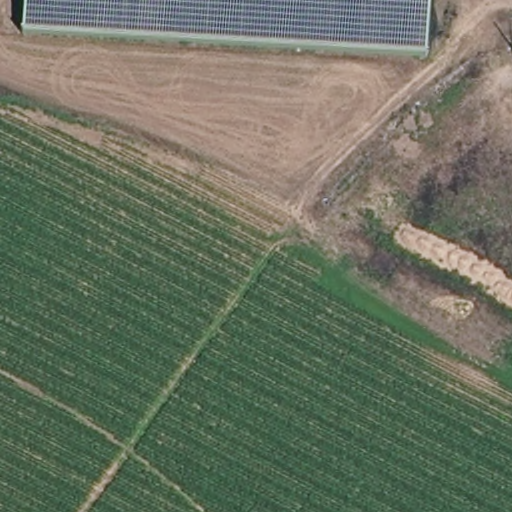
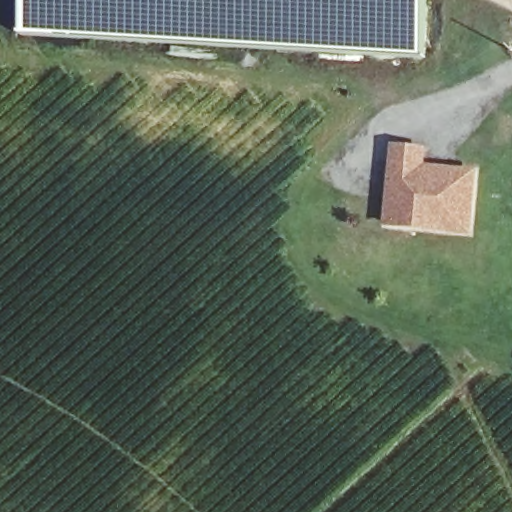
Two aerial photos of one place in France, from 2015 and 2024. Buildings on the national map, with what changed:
unchanged [(21,35),(24,0),(427,0),(423,59),(21,35)]
new [(448,232),(385,225),(392,142),(428,145),(427,164),(480,168),(473,235),(448,232)]

